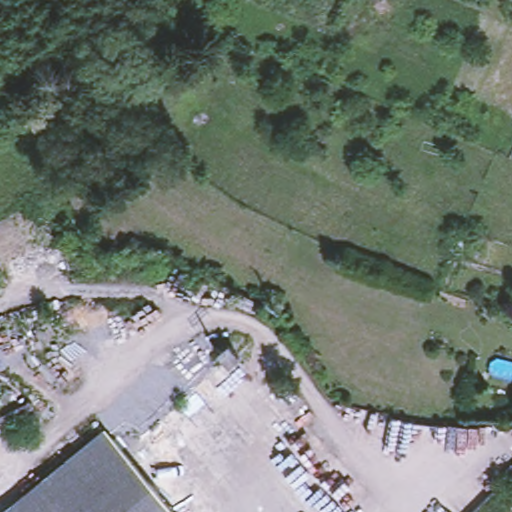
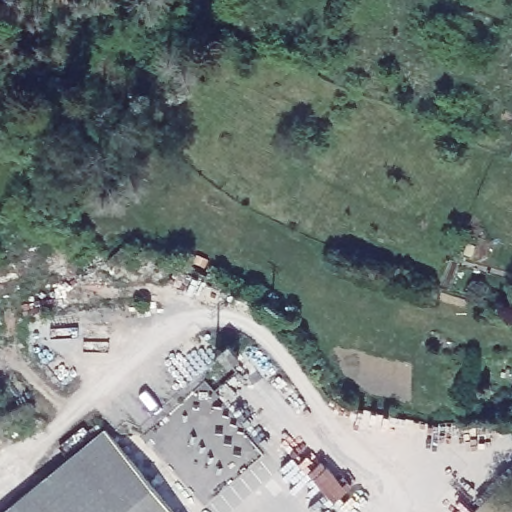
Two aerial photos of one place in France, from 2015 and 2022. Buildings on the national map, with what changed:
unchanged [(238,360),(228,368),(219,356),(229,348),(238,360)]
unchanged [(0,511),(99,430),(166,512),(0,512),(0,511)]

